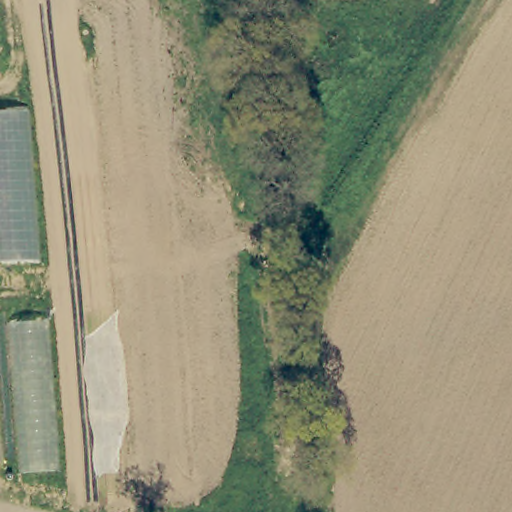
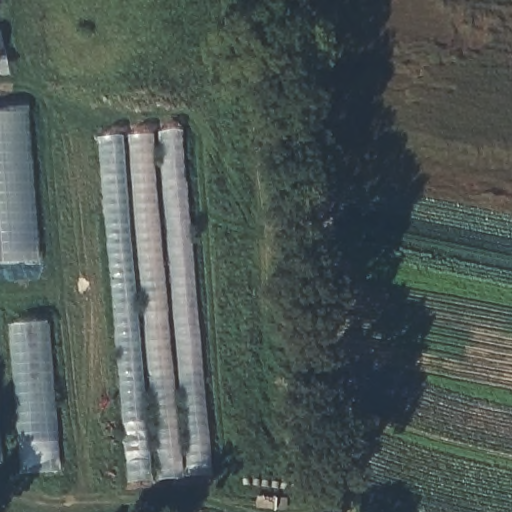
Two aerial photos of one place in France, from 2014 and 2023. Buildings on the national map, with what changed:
unchanged [(0,261),(0,111),(30,110),(38,260),(0,261)]
new [(211,475),(128,481),(96,135),(182,129),(211,475)]
unchanged [(22,472),(12,323),(48,321),(60,470),(22,472)]

